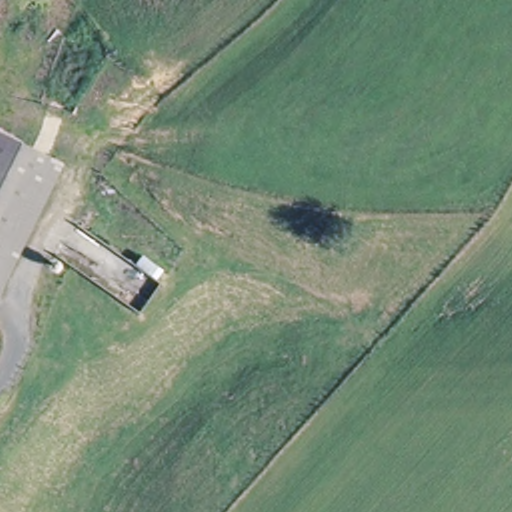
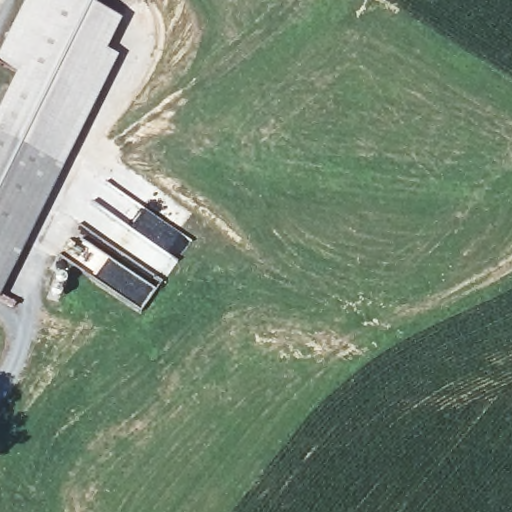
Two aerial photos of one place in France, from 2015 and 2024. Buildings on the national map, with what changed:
new [(0,68),(0,51),(25,0),(82,0),(121,19),(105,51),(117,57),(0,295),(0,255),(19,214),(47,156),(0,132),(0,104),(15,76),(0,68)]
unchanged [(19,214),(0,255),(0,132),(47,156),(19,214)]

